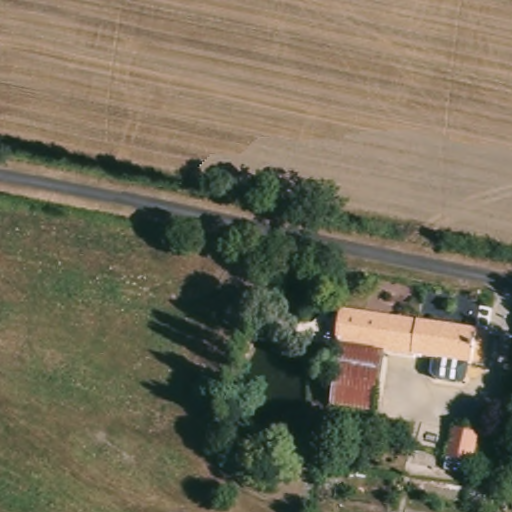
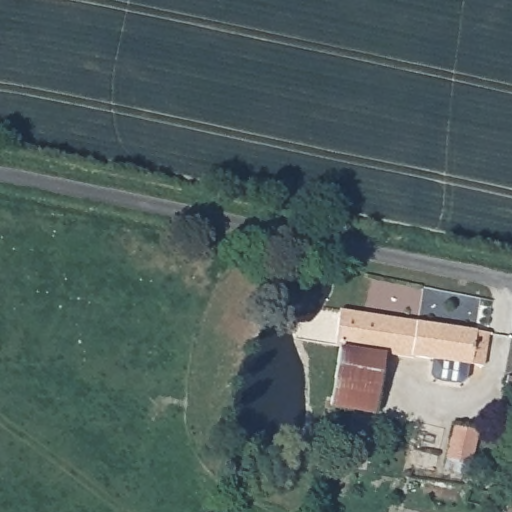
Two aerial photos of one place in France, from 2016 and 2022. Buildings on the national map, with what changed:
unchanged [(339,312),(487,339),(482,367),(457,363),(455,378),(427,375),(431,358),(392,353),(346,346),(333,343),(337,320),(339,312)]
unchanged [(392,353),(378,417),(332,407),(346,346),(392,353)]
unchanged [(477,426),(468,468),(446,464),(454,422),(477,426)]

